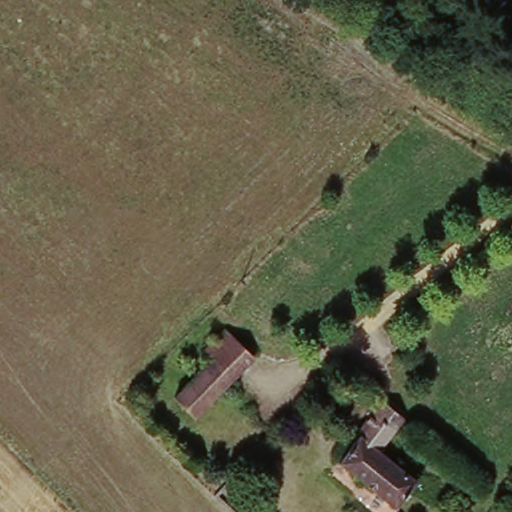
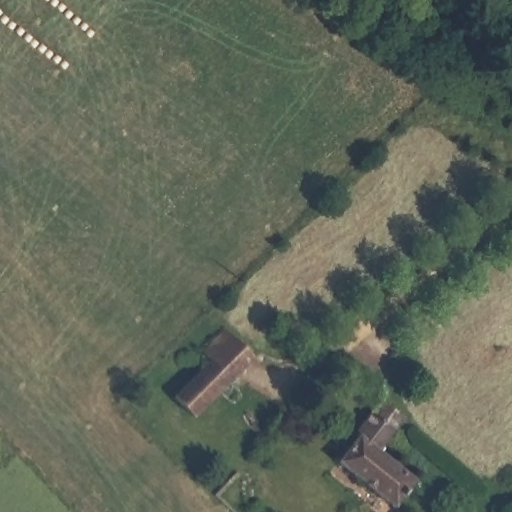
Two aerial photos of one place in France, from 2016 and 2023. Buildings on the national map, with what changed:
unchanged [(178,410),(219,363),(213,359),(231,340),(258,363),(240,383),(199,430),(178,410)]
unchanged [(337,460),(360,433),(365,438),(393,410),(397,413),(404,406),(417,416),(411,423),(385,455),(426,492),(422,496),(441,512),(394,512),(337,460)]

